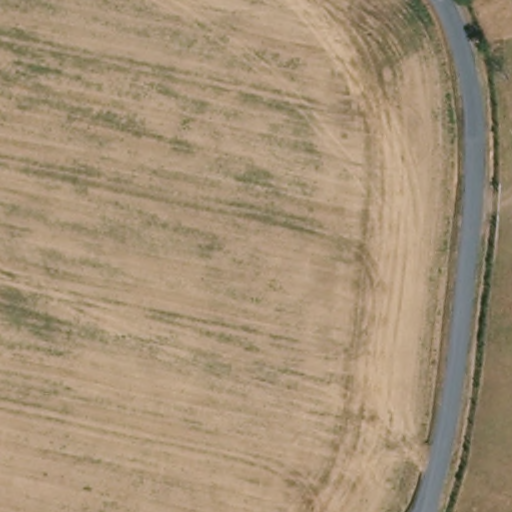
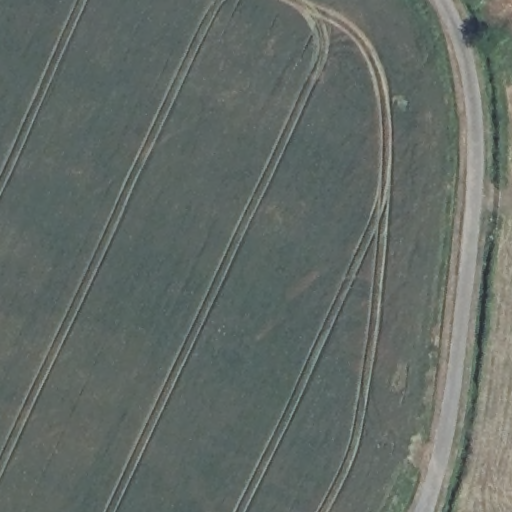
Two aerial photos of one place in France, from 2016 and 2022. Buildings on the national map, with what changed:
unchanged [(476,9),(472,0),(502,0),(476,9)]

